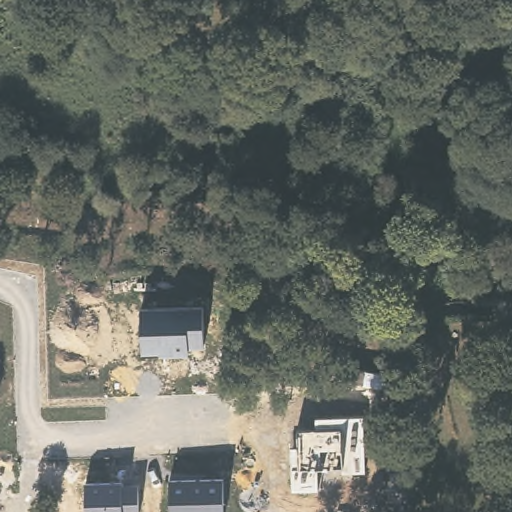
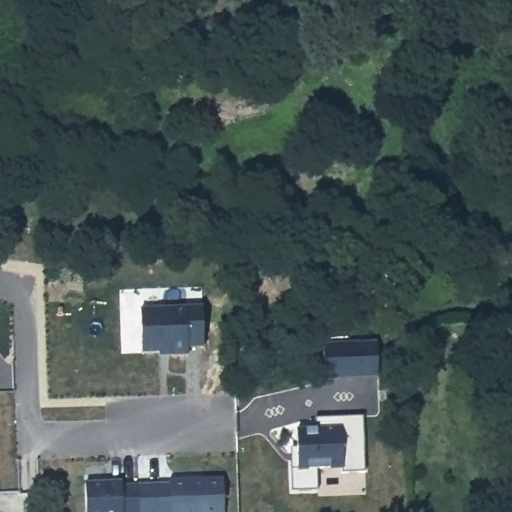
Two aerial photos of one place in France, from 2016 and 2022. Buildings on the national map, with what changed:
unchanged [(203,307),(204,347),(189,348),(189,355),(160,356),(159,350),(144,351),(141,310),(203,307)]
new [(378,341),(380,377),(324,379),(323,343),(378,341)]
unchanged [(361,418),(366,471),(345,472),(345,467),(315,469),(316,489),(294,489),(294,469),(293,448),(301,449),(300,430),(318,430),(317,420),(361,418)]
unchanged [(224,479),(224,512),(89,512),(88,482),(123,482),(123,485),(172,484),(171,480),(224,479)]

